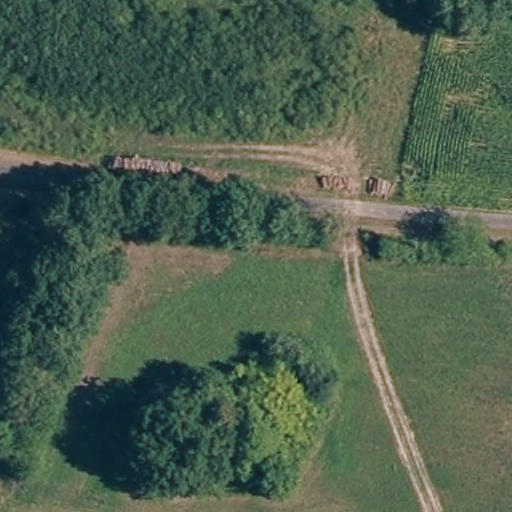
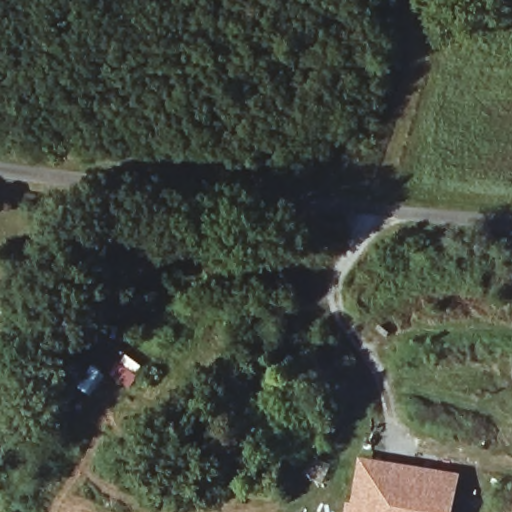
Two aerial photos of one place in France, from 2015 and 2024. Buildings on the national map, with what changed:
new [(455,512),(343,512),(344,501),(352,502),(359,456),(460,472),(455,512)]

